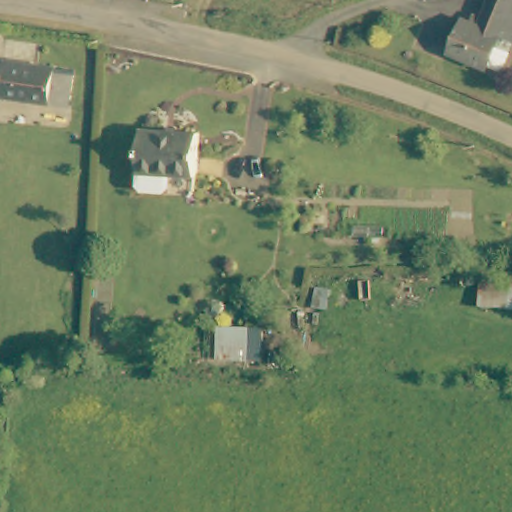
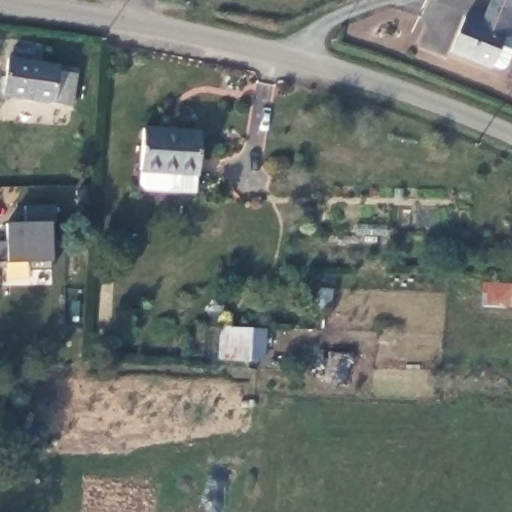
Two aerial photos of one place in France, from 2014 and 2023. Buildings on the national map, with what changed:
unchanged [(493,70),(492,72),(453,56),(467,22),(484,29),(491,12),(495,0),(512,0),(512,62),(508,71),(503,74),(493,70)]
unchanged [(73,105),(1,97),(6,60),(59,66),(59,74),(77,76),(73,105)]
unchanged [(167,190),(144,188),(139,182),(140,169),(144,126),(201,132),(197,174),(173,172),(172,185),(167,190)]
new [(25,261),(6,262),(0,262),(0,241),(6,241),(6,222),(25,222),(24,208),(51,208),(50,223),(50,262),(50,271),(29,271),(25,261)]
unchanged [(512,310),(480,311),(480,290),(512,289),(512,310)]
unchanged [(212,324),(246,327),(243,357),(209,355),(212,324)]

